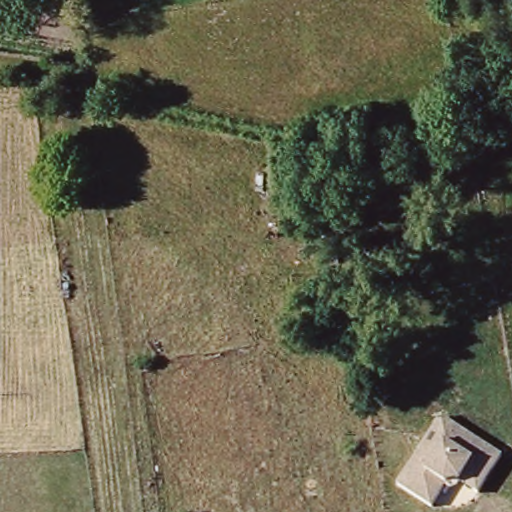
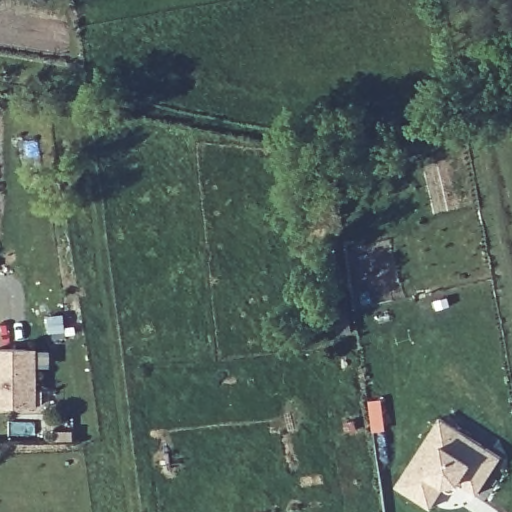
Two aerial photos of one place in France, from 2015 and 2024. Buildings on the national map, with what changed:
new [(0,407),(0,349),(38,348),(40,405),(0,407)]
unchanged [(459,483),(445,486),(431,508),(397,486),(439,417),(500,456),(477,493),(459,483)]

